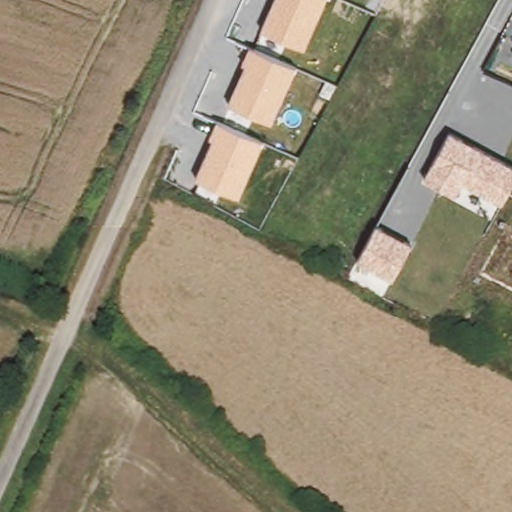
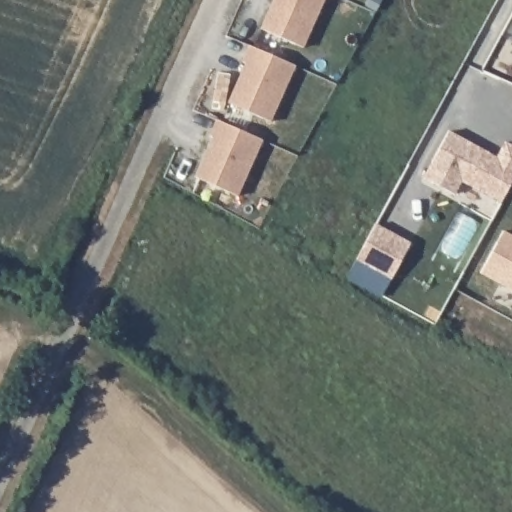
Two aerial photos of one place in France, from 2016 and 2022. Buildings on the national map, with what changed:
unchanged [(302,51),(258,32),(273,0),(326,0),(302,51)]
unchanged [(293,68),(269,124),(229,103),(246,65),(241,63),(248,48),(293,68)]
unchanged [(262,144),(237,196),(193,176),(212,138),(208,135),(215,122),(262,144)]
unchanged [(512,165),(512,182),(500,203),(462,181),(452,195),(423,178),(449,133),(512,165)]
unchanged [(392,280),(357,262),(376,226),(410,245),(392,280)]
new [(503,231),(512,236),(512,290),(481,273),(503,231)]

